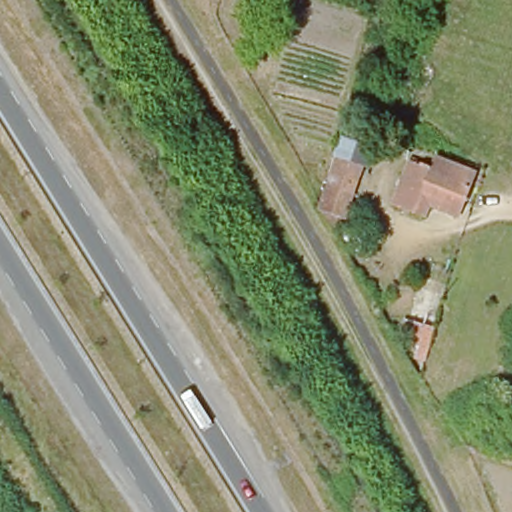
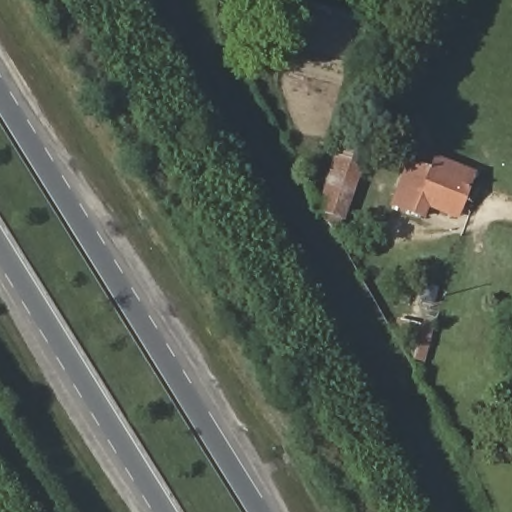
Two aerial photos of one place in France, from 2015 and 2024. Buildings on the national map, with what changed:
unchanged [(376,144),(370,161),(364,159),(349,198),(356,201),(347,226),(320,215),(350,133),(376,144)]
unchanged [(460,212),(422,200),(417,216),(392,209),(406,166),(429,174),(435,161),(474,174),(460,212)]

